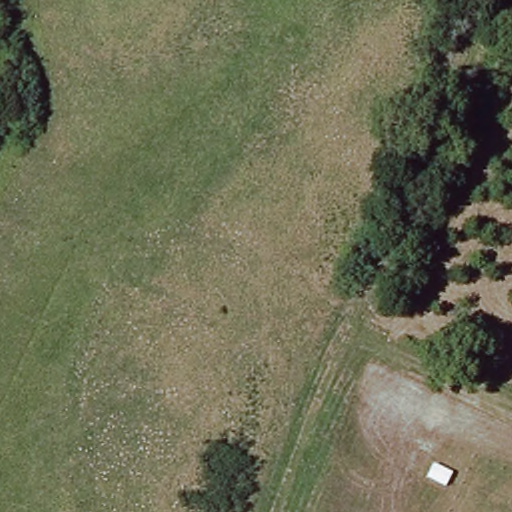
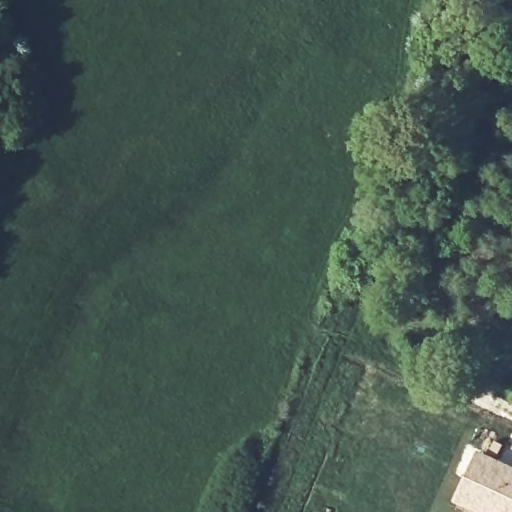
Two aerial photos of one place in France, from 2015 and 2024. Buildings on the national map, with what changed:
new [(512,465),(512,512),(477,512),(452,500),(476,448),(512,465)]

